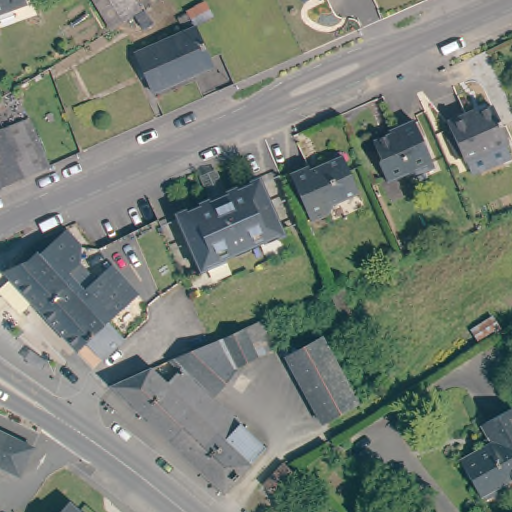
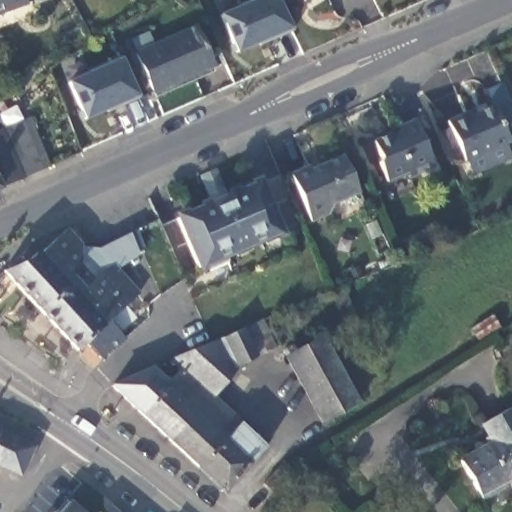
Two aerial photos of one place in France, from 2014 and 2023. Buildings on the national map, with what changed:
unchanged [(20,3),(0,10),(0,0),(19,0),(20,3)]
new [(20,3),(19,0),(31,0),(20,3)]
demolished [(136,6),(106,24),(92,0),(132,0),(136,6)]
new [(237,52),(221,15),(255,0),(277,0),(292,30),(237,52)]
unchanged [(302,2),(301,0),(308,0),(302,2)]
unchanged [(212,72),(153,97),(136,59),(195,32),(212,72)]
new [(69,82),(121,59),(139,97),(85,119),(69,82)]
unchanged [(6,92),(12,102),(0,110),(0,96),(6,92)]
unchanged [(472,151),(470,152),(452,112),(471,104),(473,107),(497,97),(512,130),(512,132),(508,134),(512,142),(512,149),(478,164),(472,151)]
unchanged [(30,119),(50,166),(22,179),(2,131),(30,119)]
unchanged [(373,142),(397,131),(396,128),(413,121),(435,167),(410,179),(407,173),(387,182),(379,163),(382,162),(373,142)]
unchanged [(22,179),(0,189),(0,132),(2,131),(22,179)]
unchanged [(342,156),(358,192),(333,204),(329,214),(311,222),(290,174),(308,166),(310,170),(342,156)]
unchanged [(267,182),(288,230),(239,252),(229,257),(231,262),(213,271),(210,266),(204,269),(181,219),(216,204),(205,177),(220,169),(232,197),(233,197),(267,182)]
unchanged [(139,288),(109,317),(125,334),(102,355),(86,337),(77,346),(4,267),(29,255),(36,249),(39,250),(66,225),(81,241),(81,257),(80,258),(95,275),(112,260),(139,288)]
unchanged [(342,320),(330,292),(343,286),(355,313),(342,320)]
unchanged [(500,328),(478,342),(471,330),(492,317),(500,328)]
unchanged [(223,338),(244,328),(262,320),(265,326),(270,323),(272,329),(267,331),(275,347),(235,366),(223,338)]
unchanged [(170,361),(170,360),(211,342),(223,338),(235,366),(211,396),(181,368),(180,370),(170,361)]
unchanged [(293,346),(296,352),(322,338),(357,403),(322,422),(283,351),(293,346)]
unchanged [(181,368),(211,396),(240,423),(199,468),(112,386),(151,368),(167,384),(180,370),(181,368)]
unchanged [(512,411),(512,482),(508,485),(506,481),(483,494),(465,461),(496,443),(486,425),(512,411)]
unchanged [(265,447),(224,492),(199,468),(240,423),(265,447)]
unchanged [(20,475),(0,466),(0,432),(32,447),(20,475)]
unchanged [(283,502),(263,484),(282,463),(302,482),(283,502)]
unchanged [(82,512),(61,512),(70,501),(82,512)]

